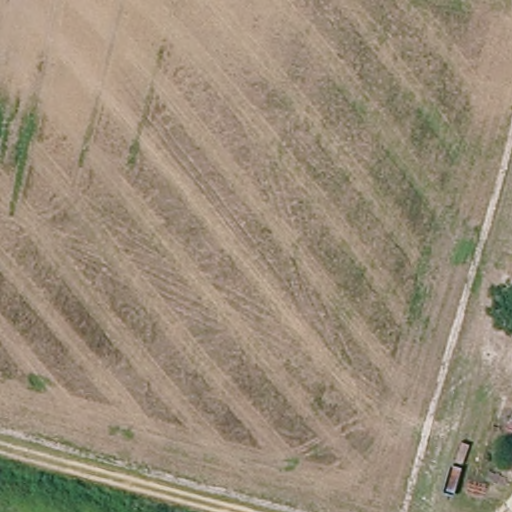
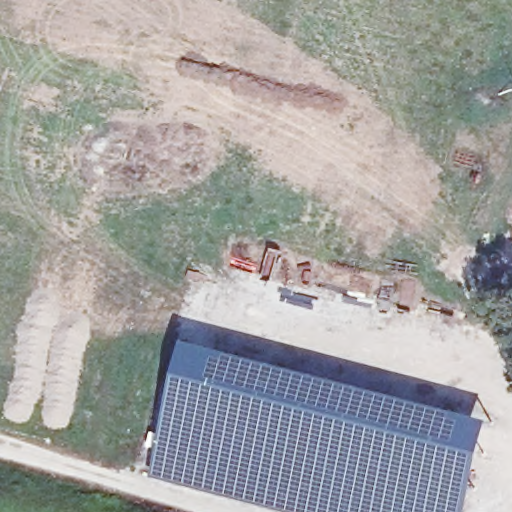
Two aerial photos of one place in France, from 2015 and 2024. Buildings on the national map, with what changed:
new [(189,340),(494,419),(469,512),(288,512),(153,475),(189,340)]

